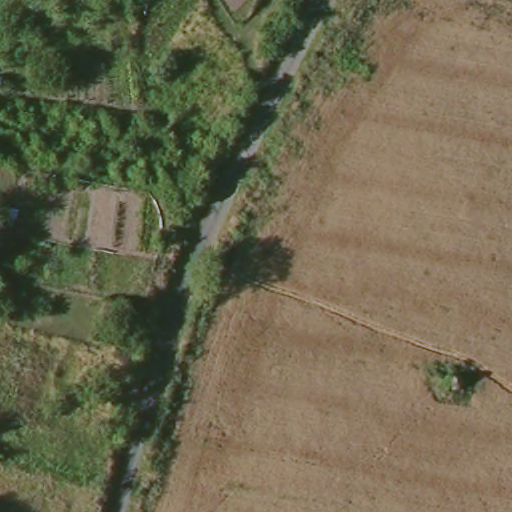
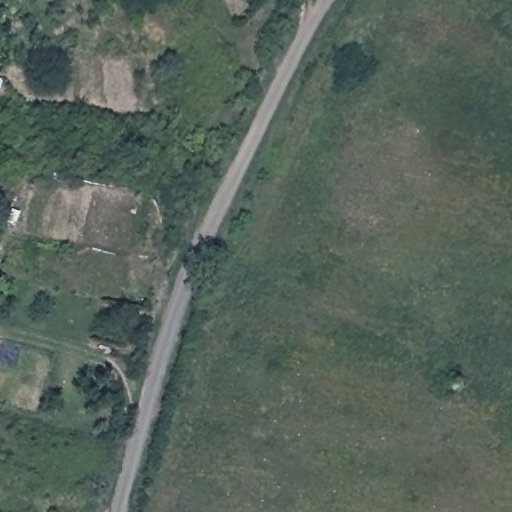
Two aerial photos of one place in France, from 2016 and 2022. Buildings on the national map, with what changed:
unchanged [(0,264),(0,243),(5,244),(0,264)]

